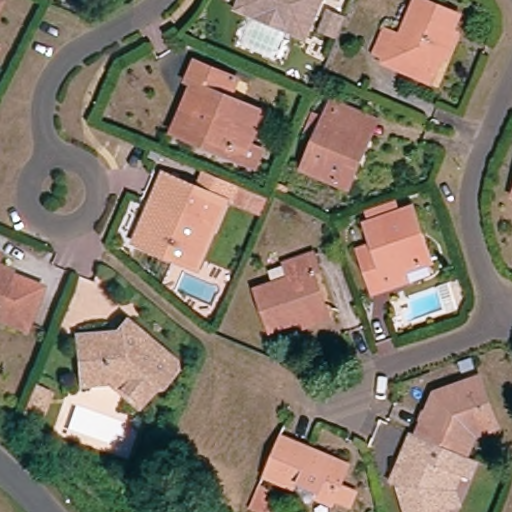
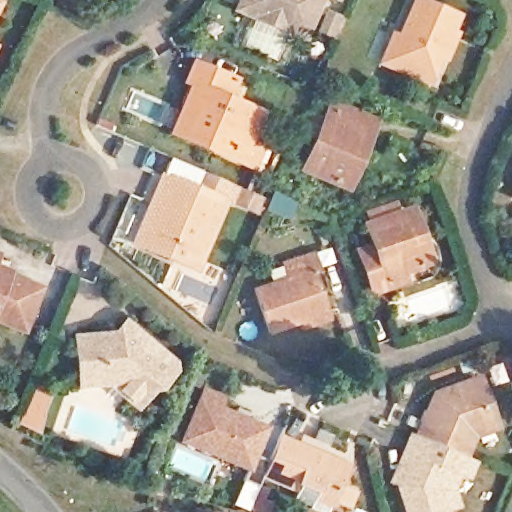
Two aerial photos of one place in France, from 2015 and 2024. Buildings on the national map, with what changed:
unchanged [(318,0),(301,41),(281,32),(251,20),(234,13),(240,0),(318,0)]
unchanged [(398,72),(383,65),(395,38),(403,41),(421,2),(459,19),(450,40),(456,42),(447,61),(441,59),(432,79),(429,85),(398,72)]
unchanged [(329,38),(318,32),(325,15),(336,20),(329,38)]
unchanged [(186,110),(195,87),(188,84),(196,65),(234,81),(240,84),(231,103),(264,117),(251,149),(263,154),(255,172),(210,153),(174,137),(186,110)]
unchanged [(375,125),(355,171),(348,189),(305,170),(318,140),(309,135),(317,117),(325,120),(332,105),(340,107),(339,109),(367,121),(375,125)]
unchanged [(187,266),(135,244),(151,205),(162,179),(185,189),(225,206),(206,251),(198,271),(187,266)]
unchanged [(391,280),(394,289),(379,295),(365,251),(377,247),(371,226),(411,212),(417,210),(429,244),(436,263),(391,280)]
unchanged [(7,252),(0,270),(45,288),(31,323),(0,311),(0,249),(7,252)]
unchanged [(289,280),(285,266),(314,256),(319,272),(314,273),(330,320),(304,329),(302,321),(270,332),(258,291),(289,280)]
unchanged [(116,337),(127,323),(176,362),(177,371),(170,381),(163,382),(163,387),(154,388),(138,409),(108,385),(82,387),(78,340),(116,337)]
unchanged [(430,381),(473,366),(491,415),(471,422),(462,442),(413,421),(430,381)]
new [(179,441),(203,385),(227,395),(222,406),(269,425),(250,471),(179,441)]
unchanged [(454,493),(440,497),(445,512),(406,512),(394,471),(407,440),(399,437),(407,419),(413,421),(462,442),(470,445),(462,465),(455,462),(449,476),(454,493)]
unchanged [(281,437),(349,466),(331,506),(316,500),(312,507),(294,500),(297,492),(263,478),(281,437)]
unchanged [(210,512),(198,512),(198,510),(210,512)]

